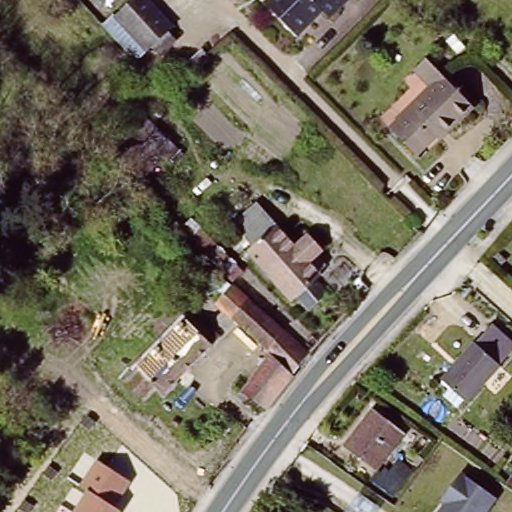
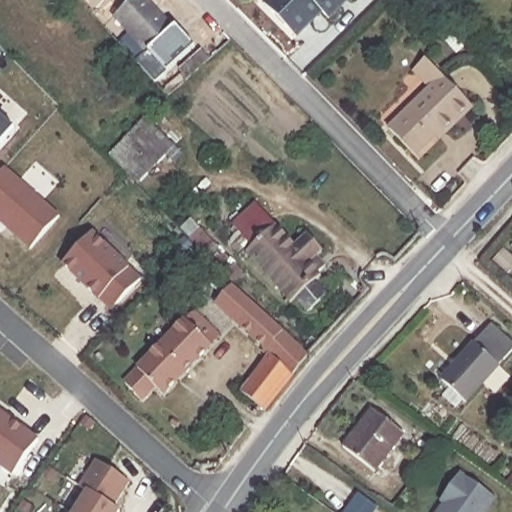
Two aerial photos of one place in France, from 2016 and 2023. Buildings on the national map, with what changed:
unchanged [(156,57),(148,49),(143,53),(111,18),(132,0),(141,0),(169,30),(162,36),(170,44),(156,57)]
unchanged [(320,16),(313,9),(287,34),(255,2),(257,0),(336,0),(320,16)]
unchanged [(417,158),(391,131),(431,92),(415,75),(426,63),(443,80),(474,111),(447,137),(441,143),(437,139),(417,158)]
new [(15,127),(0,146),(0,114),(15,127)]
unchanged [(108,151),(143,116),(172,144),(137,180),(108,151)]
new [(5,167),(61,216),(33,248),(9,227),(0,219),(0,173),(5,167)]
unchanged [(303,259),(310,253),(318,263),(311,268),(325,284),(318,289),(330,302),(310,318),(300,305),(294,310),(251,260),(257,254),(242,237),(236,230),(260,209),(263,214),(303,259)]
new [(111,311),(60,263),(92,229),(141,280),(111,311)]
unchanged [(310,361),(293,379),(266,415),(264,413),(243,397),(271,360),(266,355),(268,353),(235,320),(222,306),(240,288),(253,302),(310,359),(310,361)]
unchanged [(156,391),(138,375),(200,308),(218,325),(225,332),(216,341),(177,383),(170,377),(156,391)]
unchanged [(476,345),(495,324),(512,339),(512,356),(502,367),(460,415),(435,393),(476,345)]
new [(15,475),(0,465),(0,411),(38,438),(15,475)]
unchanged [(366,476),(335,452),(364,414),(396,439),(366,476)]
unchanged [(78,484),(95,458),(132,482),(115,507),(121,510),(120,512),(72,512),(87,490),(78,484)]
unchanged [(483,512),(439,512),(443,505),(437,501),(457,474),(492,499),(483,512)]
new [(379,507),(376,512),(344,512),(358,492),(379,507)]
unchanged [(438,512),(436,512),(437,511),(438,512)]

